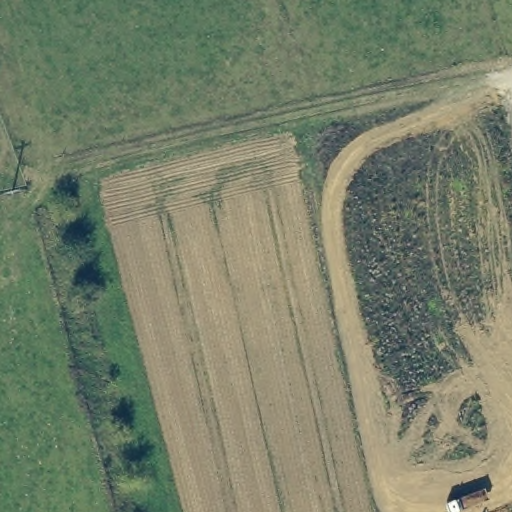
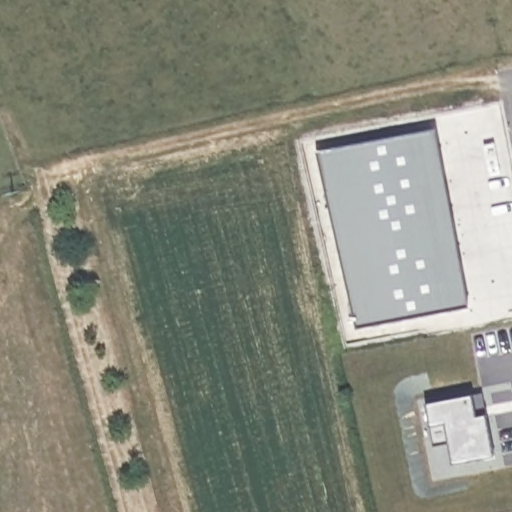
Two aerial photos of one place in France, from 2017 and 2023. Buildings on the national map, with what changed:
new [(356,329),(317,152),(435,130),(469,307),(356,329)]
new [(475,395),(479,416),(487,459),(445,467),(441,446),(426,448),(418,405),(465,396),(475,395)]

